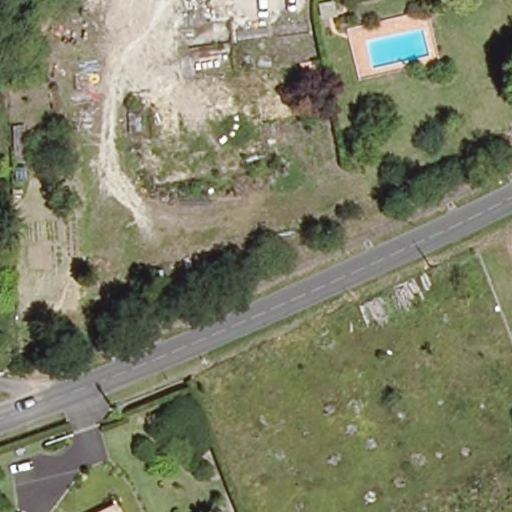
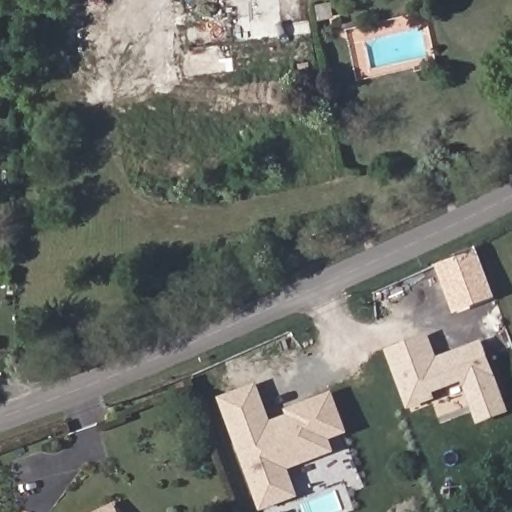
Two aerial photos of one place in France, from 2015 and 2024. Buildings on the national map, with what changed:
new [(475,249),(495,300),(455,316),(436,266),(475,249)]
new [(426,340),(434,364),(480,347),(496,392),(470,402),(463,382),(429,395),(431,400),(408,409),(388,353),(426,340)]
new [(264,427),(279,422),(288,419),(286,413),(326,398),(339,432),(321,440),(325,452),(279,469),(289,496),(258,508),(219,400),(251,388),(264,427)]
unchanged [(118,512),(98,512),(115,505),(118,512)]

